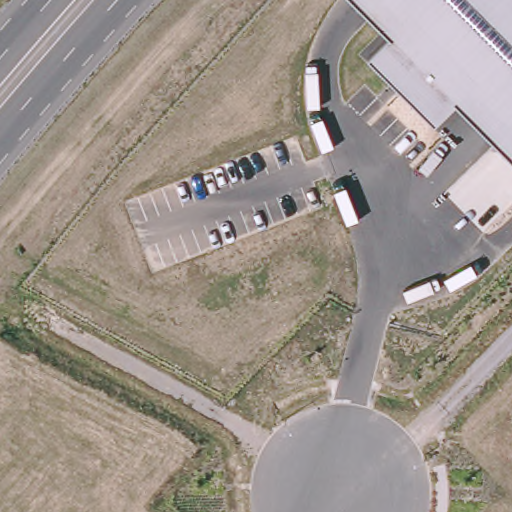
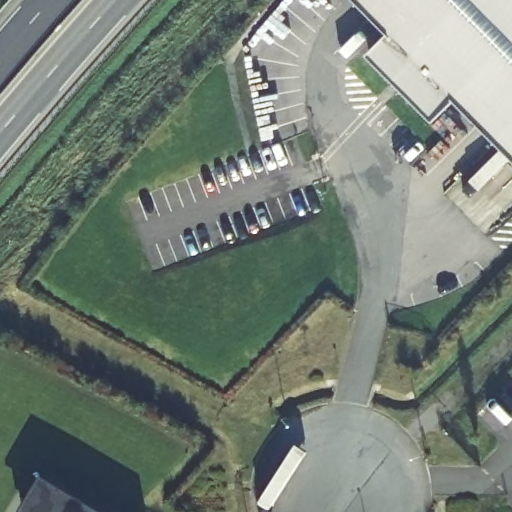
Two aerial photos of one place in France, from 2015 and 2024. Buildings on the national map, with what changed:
unchanged [(437,120),(371,52),(392,32),(360,0),(512,0),(512,153),(459,99),(437,120)]
new [(19,512),(43,475),(108,512),(19,512)]

